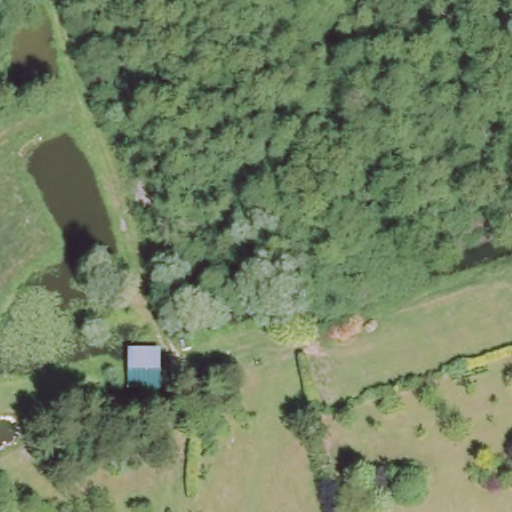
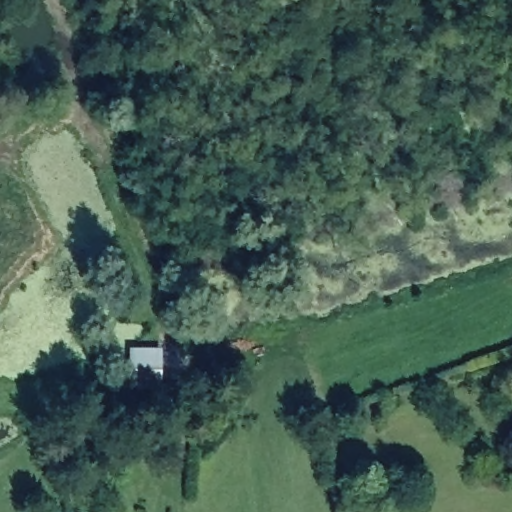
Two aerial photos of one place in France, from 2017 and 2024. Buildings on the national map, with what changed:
unchanged [(127,343),(164,343),(164,388),(128,388),(127,343)]

